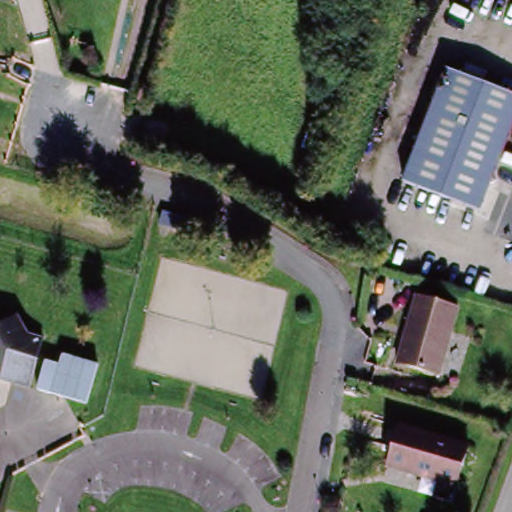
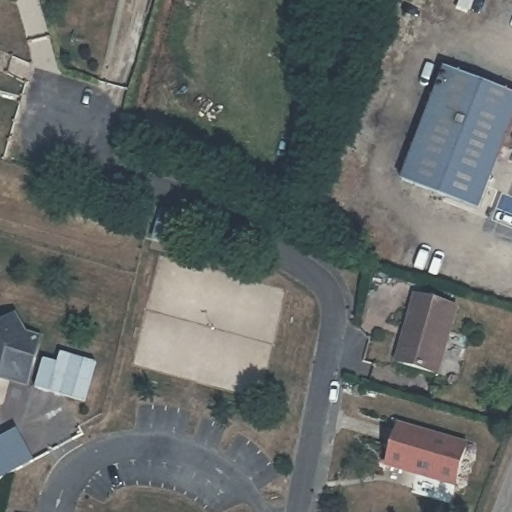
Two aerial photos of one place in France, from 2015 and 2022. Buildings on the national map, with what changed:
unchanged [(443,70),(512,95),(512,124),(478,211),(400,178),(412,147),(443,70)]
unchanged [(436,375),(396,361),(416,296),(456,308),(436,375)]
unchanged [(19,316),(26,332),(42,336),(25,383),(0,374),(0,327),(19,316)]
unchanged [(45,360),(59,362),(62,353),(97,363),(88,403),(38,386),(45,360)]
unchanged [(470,447),(458,489),(430,480),(407,473),(389,467),(400,425),(470,447)]
new [(17,427),(33,458),(0,475),(0,436),(17,427)]

